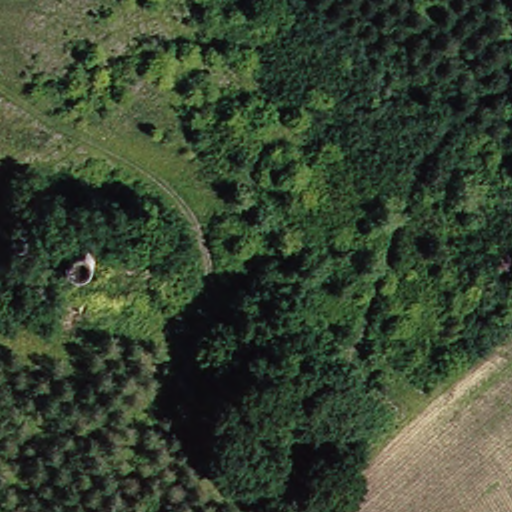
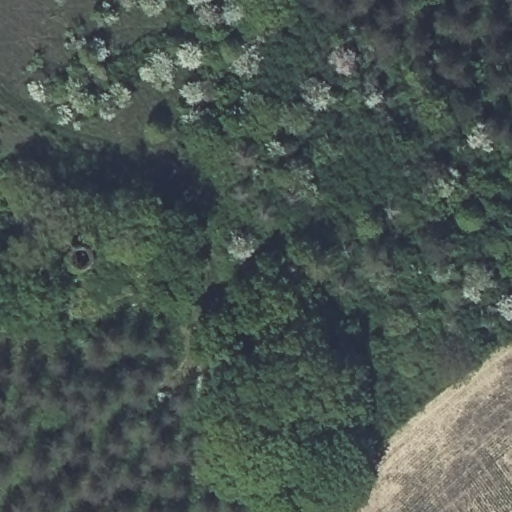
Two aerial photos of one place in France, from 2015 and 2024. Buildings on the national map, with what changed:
unchanged [(81,242),(89,240),(98,245),(102,255),(101,268),(89,276),(75,271),(69,257),(74,246),(81,242)]

